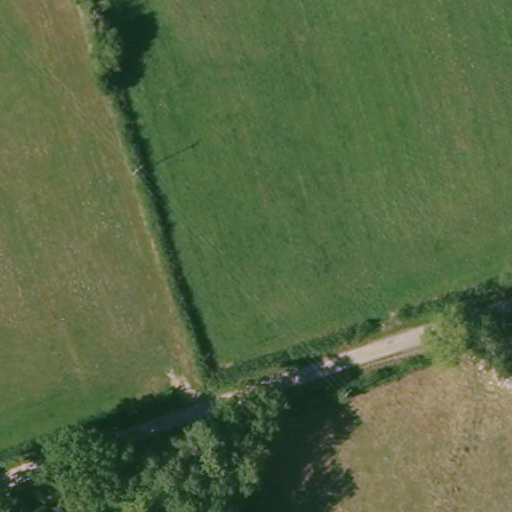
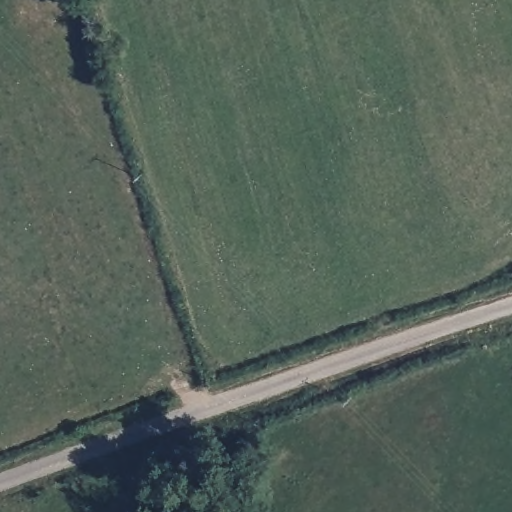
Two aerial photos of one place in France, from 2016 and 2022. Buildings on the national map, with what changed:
[]

